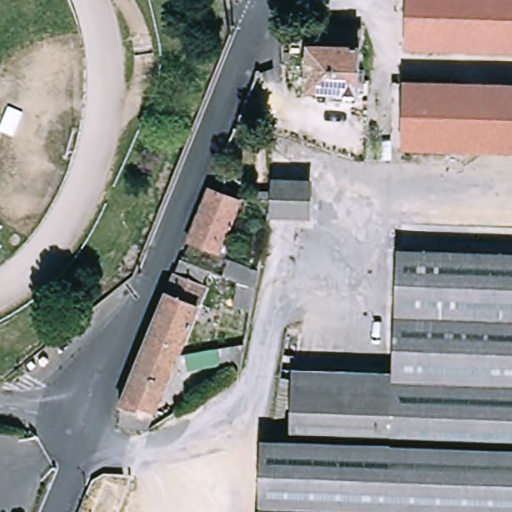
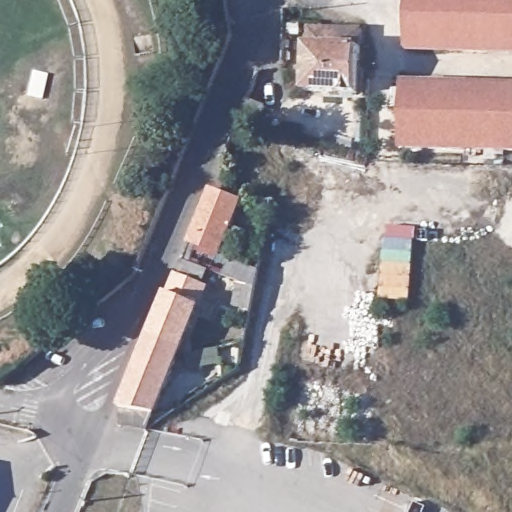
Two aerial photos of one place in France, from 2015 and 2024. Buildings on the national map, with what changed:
unchanged [(410,51),(412,0),(512,0),(512,54),(410,51)]
unchanged [(359,29),(358,91),(308,91),(310,28),(359,29)]
unchanged [(412,148),(415,81),(512,84),(512,150),(412,148)]
unchanged [(262,105),(255,124),(237,118),(245,99),(262,105)]
unchanged [(242,191),(215,254),(187,242),(212,182),(242,191)]
new [(416,228),(410,301),(380,298),(386,226),(416,228)]
demolished [(298,378),(405,381),(409,251),(512,254),(512,448),(296,441),(298,378)]
unchanged [(185,258),(216,271),(210,286),(204,299),(173,288),(185,258)]
unchanged [(216,271),(227,276),(234,258),(265,269),(252,303),(210,286),(216,271)]
unchanged [(124,425),(125,407),(173,288),(204,299),(181,355),(158,412),(152,431),(124,425)]
demolished [(512,448),(512,512),(269,512),(271,441),(296,441),(512,448)]
demolished [(102,480),(122,487),(112,512),(90,512),(102,480)]

